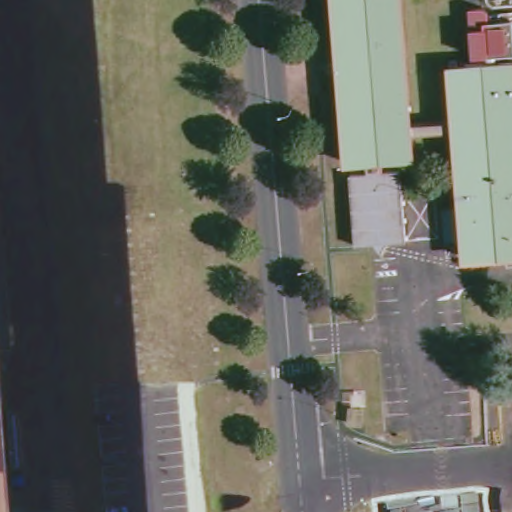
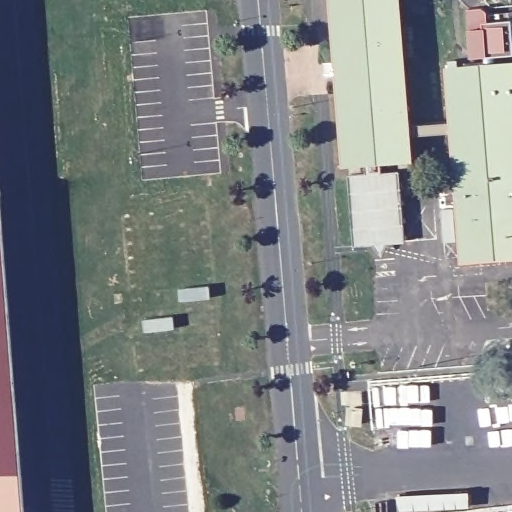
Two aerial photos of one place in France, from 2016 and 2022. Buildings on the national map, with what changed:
unchanged [(330,0),(396,0),(408,155),(376,157),(379,170),(396,169),(402,239),(351,243),(346,173),(364,172),(362,158),(343,159),(330,0)]
unchanged [(484,63),(481,19),(509,17),(511,50),(491,51),(492,61),(512,60),(512,67),(512,252),(461,256),(447,66),(484,63)]
unchanged [(2,512),(0,512),(0,483),(2,512)]

